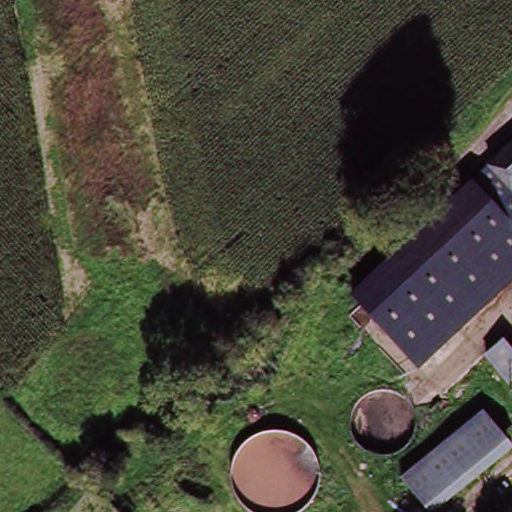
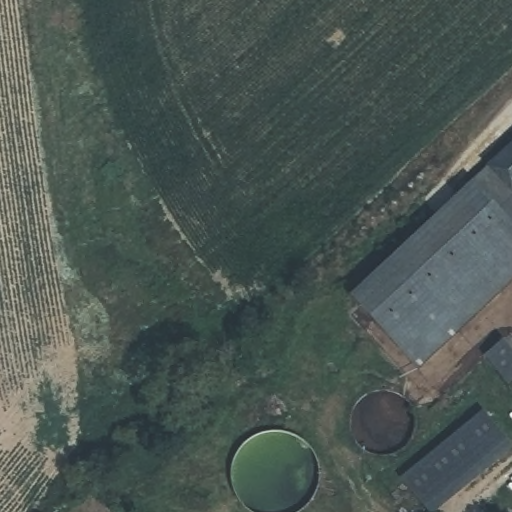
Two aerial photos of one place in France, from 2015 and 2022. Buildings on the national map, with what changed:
unchanged [(419,367),(379,323),(354,295),(352,293),(471,183),(512,143),(512,281),(419,367)]
unchanged [(509,375),(504,378),(484,353),(503,338),(512,349),(512,379),(509,375)]
unchanged [(431,512),(418,512),(395,482),(480,412),(512,446),(512,453),(431,512)]

